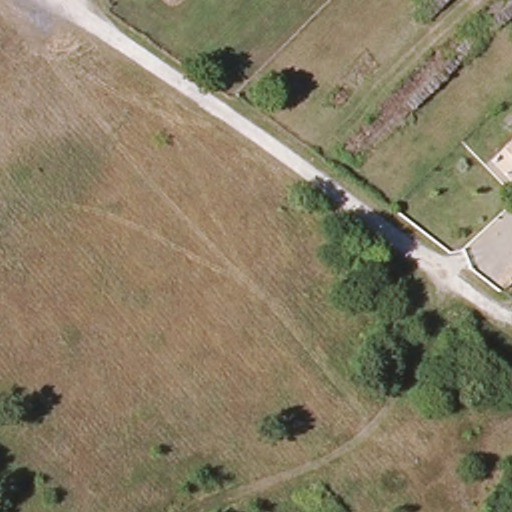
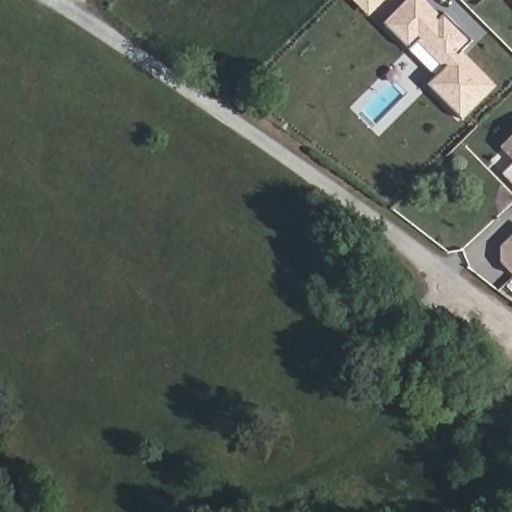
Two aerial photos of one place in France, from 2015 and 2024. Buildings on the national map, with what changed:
new [(372,14),(359,0),(387,0),(372,14)]
new [(409,0),(429,0),(445,15),(447,12),(476,40),(465,52),(498,86),(467,117),(432,84),(452,63),(424,34),(412,44),(388,22),(409,0)]
unchanged [(512,154),(509,157),(501,147),(512,137),(512,154)]
unchanged [(512,154),(512,159),(509,157),(512,154)]
new [(512,270),(504,261),(503,247),(512,238),(512,270)]

